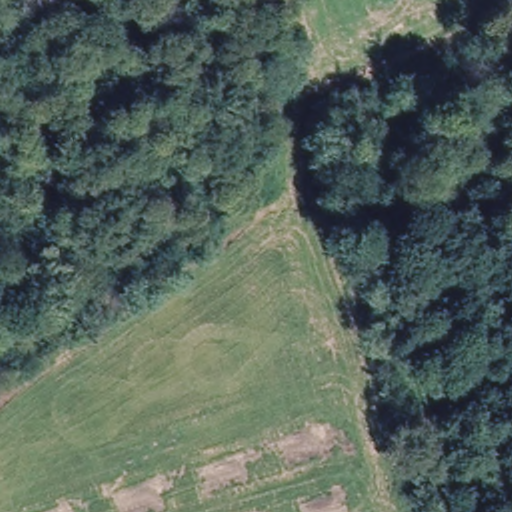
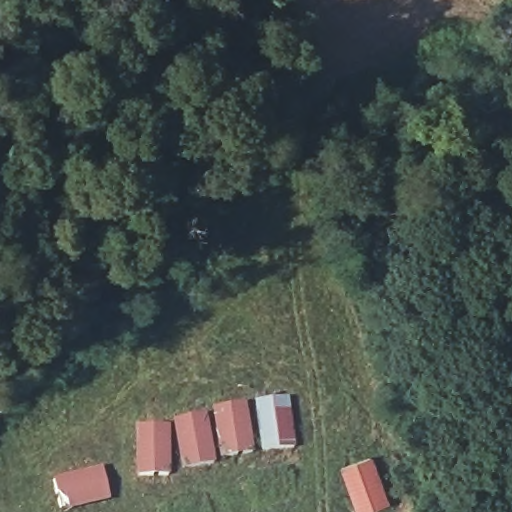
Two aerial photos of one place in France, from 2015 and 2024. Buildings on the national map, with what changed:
new [(289,397),(294,444),(262,449),(260,439),(275,436),(271,410),(265,411),(265,409),(255,410),(254,401),(289,397)]
new [(246,402),(254,453),(215,459),(213,424),(211,408),(246,402)]
new [(172,425),(172,419),(207,413),(213,424),(215,459),(216,465),(181,471),(174,431),(170,431),(170,426),(172,425)]
new [(135,425),(170,426),(170,431),(171,477),(135,479),(135,425)]
new [(388,502),(362,512),(356,512),(339,470),(370,457),(388,502)]
demolished [(371,512),(360,471),(395,462),(396,464),(404,512),(371,512)]
new [(102,466),(110,501),(61,512),(51,479),(102,466)]

